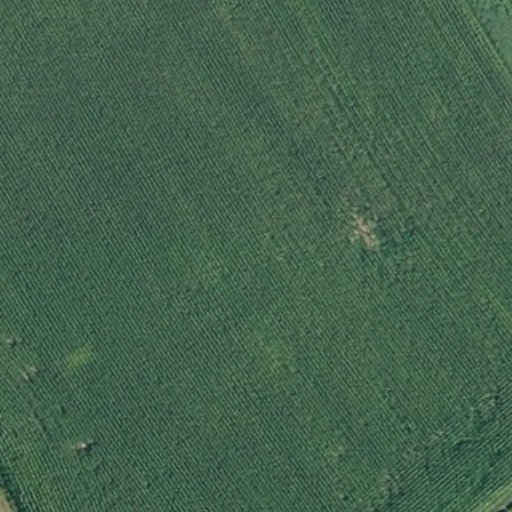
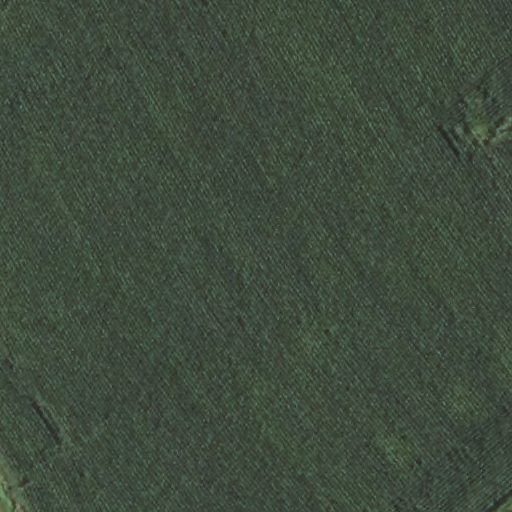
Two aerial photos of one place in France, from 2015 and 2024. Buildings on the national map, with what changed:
[]

